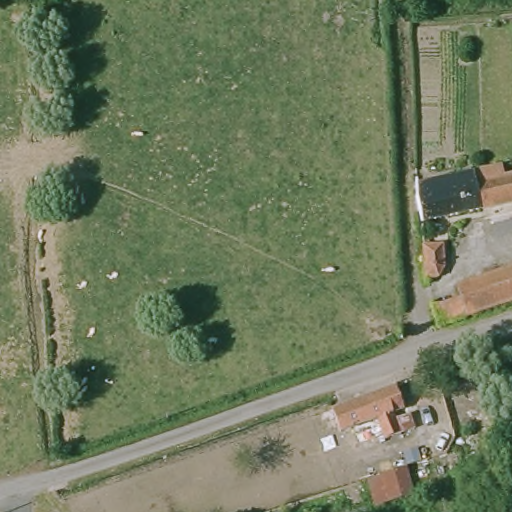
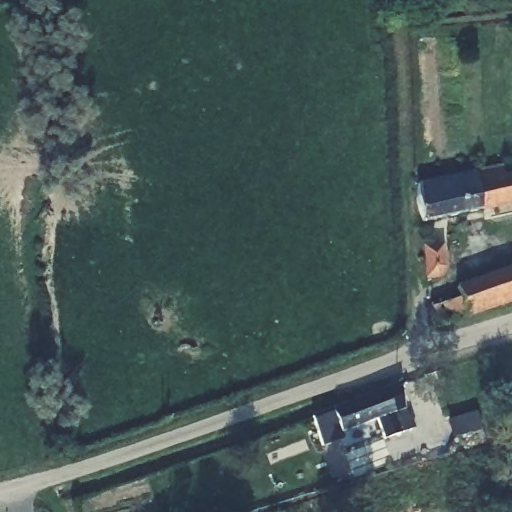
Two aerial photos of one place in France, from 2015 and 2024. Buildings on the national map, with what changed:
unchanged [(512,203),(417,224),(412,198),(413,185),(512,165),(512,203)]
unchanged [(430,249),(450,248),(451,268),(447,278),(432,279),(430,249)]
unchanged [(467,300),(464,290),(512,275),(512,306),(444,327),(439,308),(467,300)]
unchanged [(277,432),(414,380),(421,402),(398,412),(403,428),(400,430),(403,440),(392,445),(388,435),(384,435),(377,420),(286,455),(277,432)]
unchanged [(416,499),(375,512),(367,483),(407,468),(416,499)]

